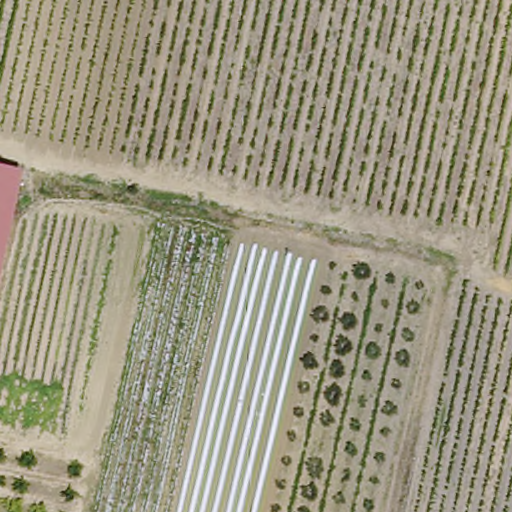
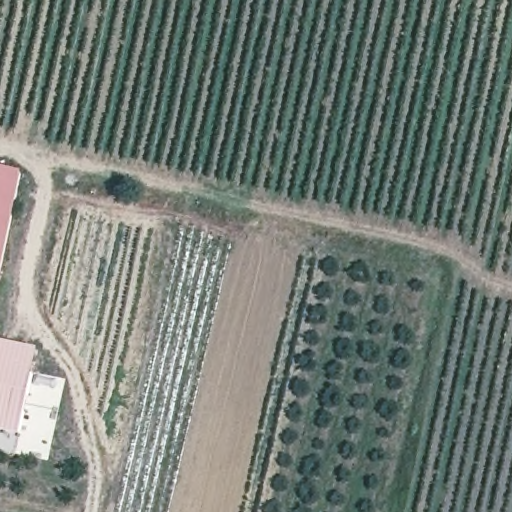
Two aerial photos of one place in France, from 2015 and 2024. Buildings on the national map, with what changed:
unchanged [(17,167),(0,254),(0,164),(17,167)]
new [(38,348),(20,436),(0,432),(0,339),(38,348)]

